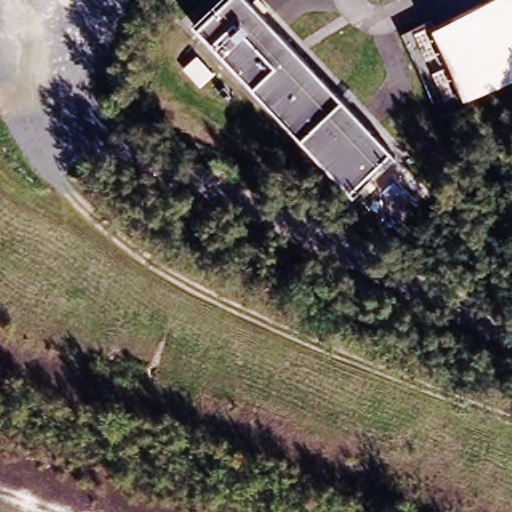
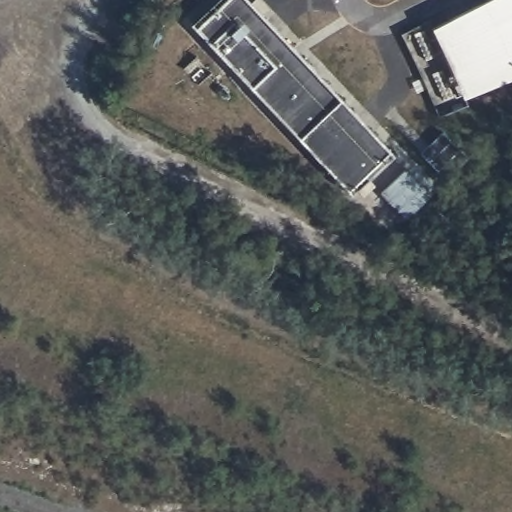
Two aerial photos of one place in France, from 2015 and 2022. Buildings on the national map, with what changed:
unchanged [(220,0),(242,0),(385,152),(344,191),(190,28),(220,0)]
unchanged [(447,18),(484,0),(512,0),(512,79),(487,90),(447,18)]
unchanged [(487,90),(469,98),(429,28),(447,18),(487,90)]

